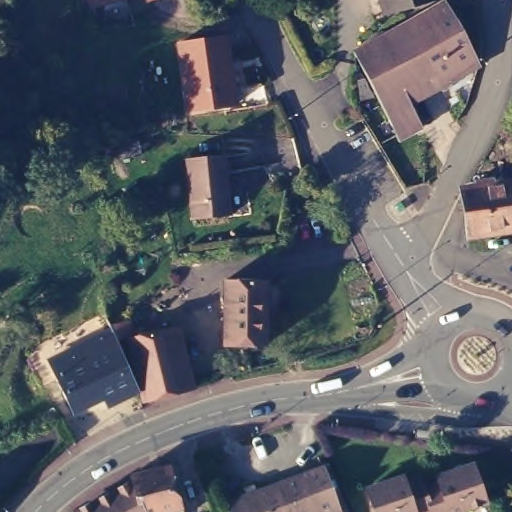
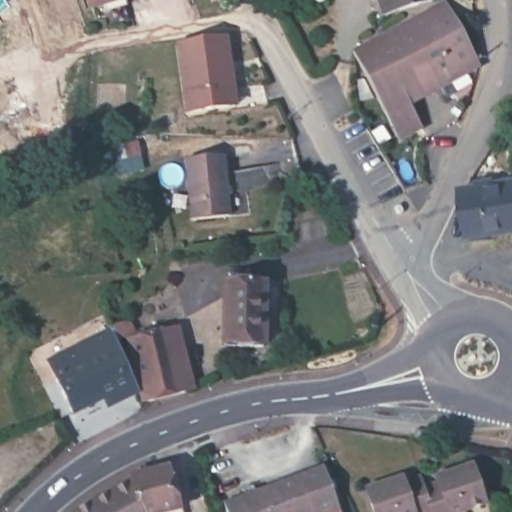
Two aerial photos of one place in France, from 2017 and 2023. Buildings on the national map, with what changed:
unchanged [(88,6),(87,0),(110,0),(88,6)]
unchanged [(383,14),(379,0),(429,0),(383,14)]
unchanged [(442,92),(440,87),(408,104),(421,129),(400,141),(353,54),(445,4),(478,65),(450,81),(452,87),(442,92)]
unchanged [(228,107),(188,112),(178,44),(226,38),(230,62),(235,106),(228,107)]
unchanged [(115,148),(137,144),(140,156),(117,160),(115,148)]
unchanged [(223,156),(230,217),(192,220),(187,159),(223,156)]
unchanged [(480,182),(500,179),(501,186),(512,184),(512,229),(475,235),(469,190),(476,189),(475,183),(480,182)]
unchanged [(270,281),(270,346),(230,346),(231,281),(270,281)]
unchanged [(102,404),(72,418),(56,384),(61,382),(57,372),(93,355),(85,335),(107,323),(116,345),(135,390),(102,404)]
unchanged [(143,407),(127,343),(171,332),(187,397),(143,407)]
unchanged [(405,482),(420,478),(423,488),(438,483),(436,477),(472,465),(485,503),(459,512),(375,512),(367,489),(403,477),(405,482)]
unchanged [(336,512),(319,512),(305,475),(328,466),(344,509),(336,512)]
unchanged [(132,478),(171,468),(178,494),(184,512),(78,512),(133,482),(132,478)]
unchanged [(305,475),(319,512),(291,512),(281,484),(305,475)]
unchanged [(259,485),(261,491),(281,484),(291,512),(233,512),(230,503),(251,495),(248,489),(259,485)]

